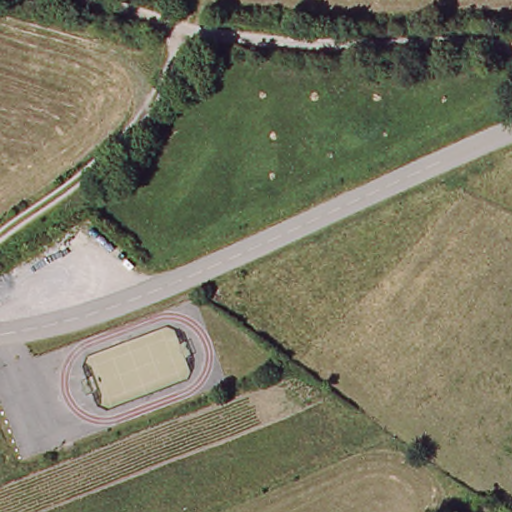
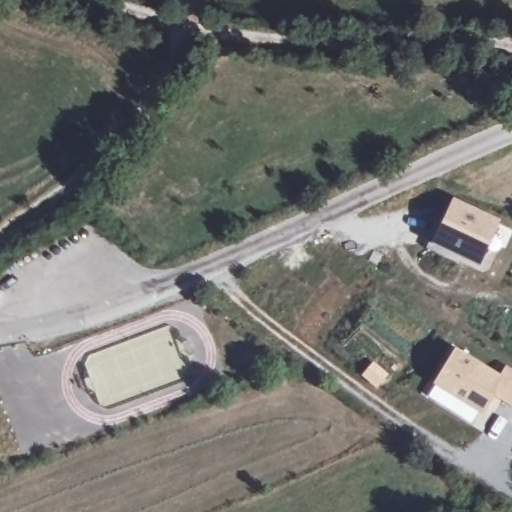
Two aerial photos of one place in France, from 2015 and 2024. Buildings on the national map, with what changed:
new [(480,266),(430,244),(452,199),(500,220),(480,266)]
new [(512,370),(512,406),(495,394),(482,416),(433,385),(457,349),(500,376),(507,367),(512,370)]

